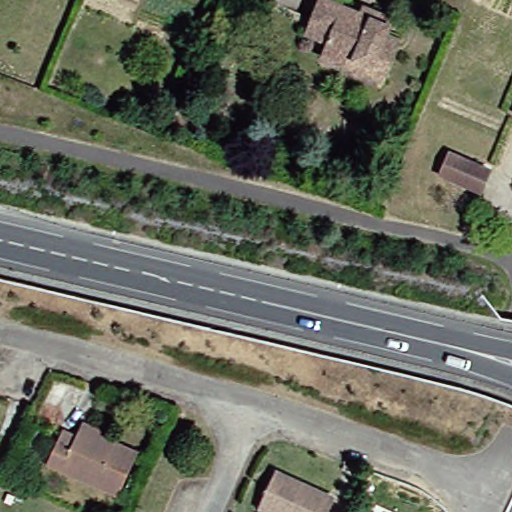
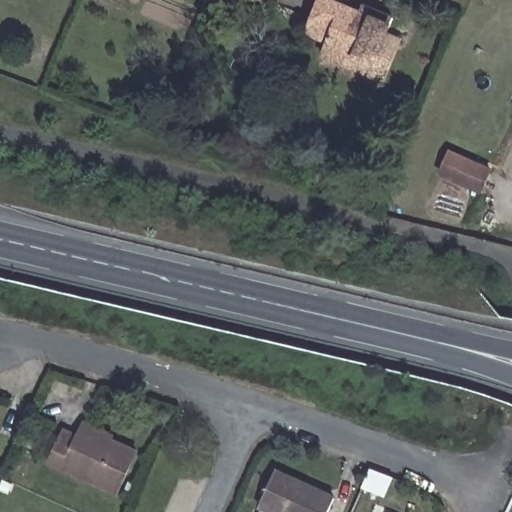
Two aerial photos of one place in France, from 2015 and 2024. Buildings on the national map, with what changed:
unchanged [(337,56),(333,65),(312,56),(318,43),(295,33),(309,0),(321,0),(361,16),(364,9),(383,17),(376,34),(362,66),(337,56)]
unchanged [(512,110),(510,109),(512,106),(512,110)]
unchanged [(424,171),(434,149),(474,166),(464,188),(424,171)]
unchanged [(102,446),(105,440),(130,452),(110,494),(44,464),(59,431),(73,437),(75,433),(102,446)]
unchanged [(245,503),(261,468),(320,494),(312,512),(266,512),(245,503)]

